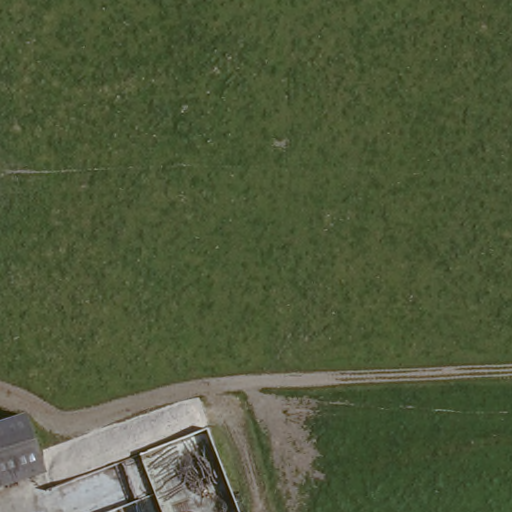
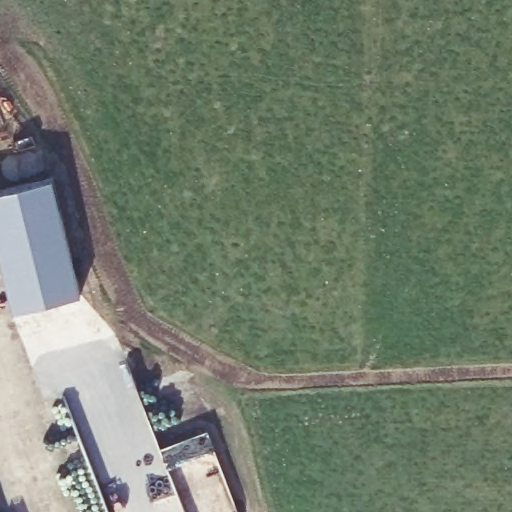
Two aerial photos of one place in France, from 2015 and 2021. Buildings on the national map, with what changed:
new [(0,191),(52,178),(80,293),(14,310),(0,253),(0,191)]
demolished [(47,481),(0,497),(0,427),(26,418),(47,481)]

